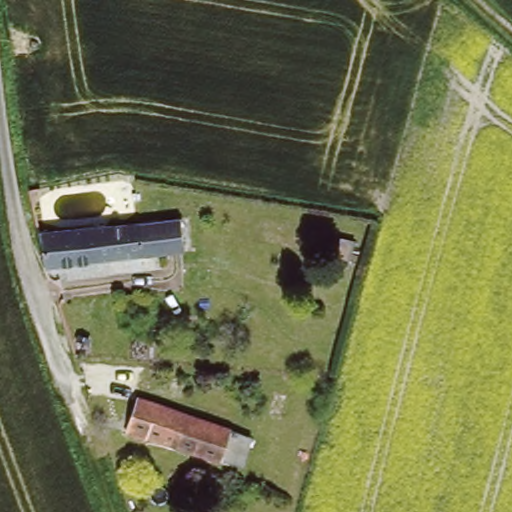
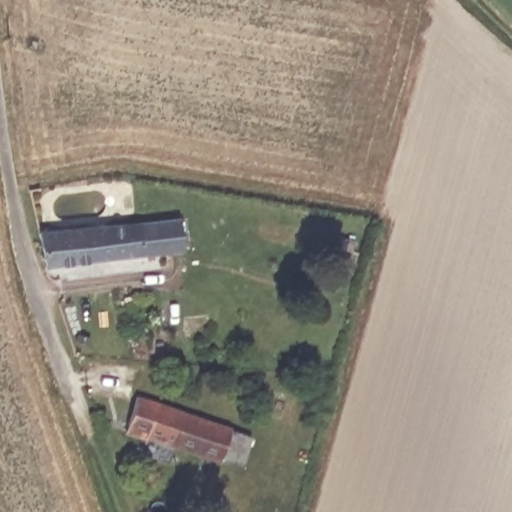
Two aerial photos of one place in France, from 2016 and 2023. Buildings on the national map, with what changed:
unchanged [(180,218),(183,253),(166,254),(86,260),(80,225),(161,219),(180,218)]
unchanged [(86,260),(45,265),(38,230),(80,225),(86,260)]
unchanged [(229,458),(219,455),(218,459),(151,438),(153,433),(133,426),(141,400),(214,421),(213,425),(229,430),(231,426),(239,428),(236,441),(229,439),(228,444),(234,446),(229,458)]

